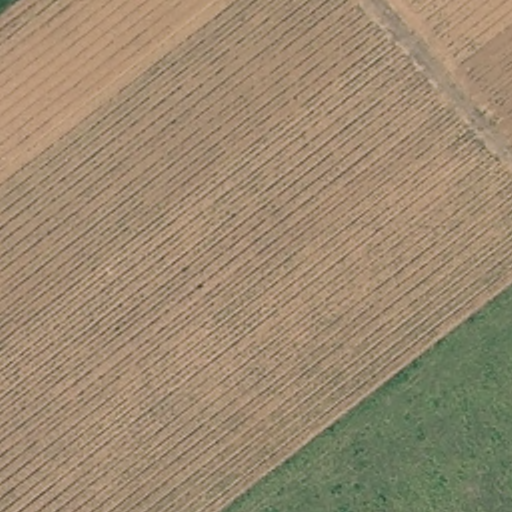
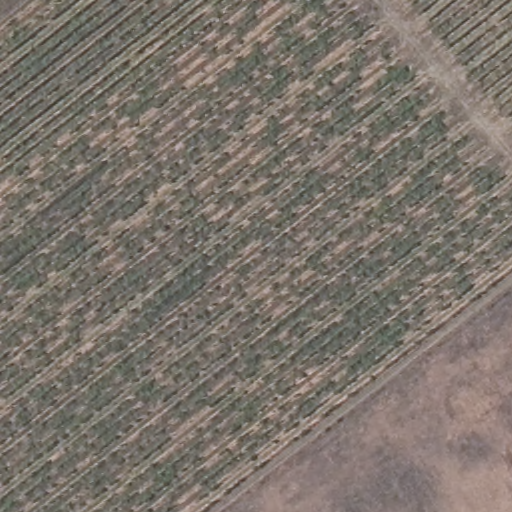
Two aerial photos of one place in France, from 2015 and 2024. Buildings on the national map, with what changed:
[]

